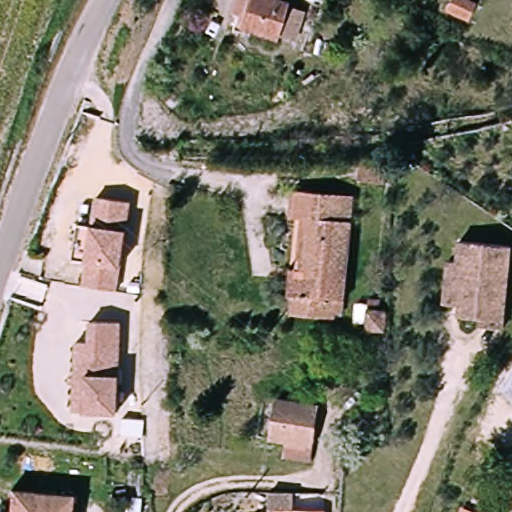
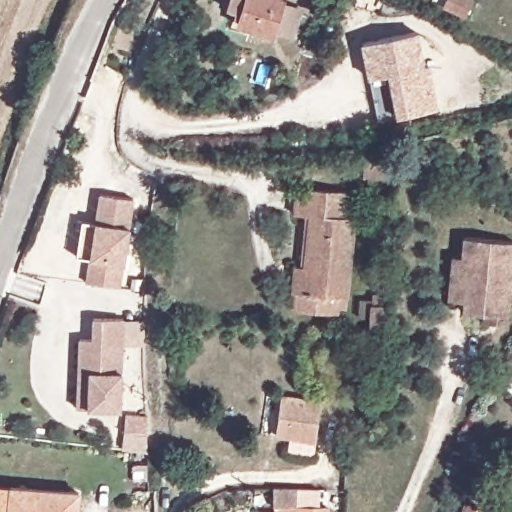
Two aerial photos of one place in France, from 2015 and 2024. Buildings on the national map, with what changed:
unchanged [(274,27),(273,33),(242,24),(249,0),(283,0),(280,16),(287,19),(284,31),(274,27)]
unchanged [(447,6),(450,0),(471,0),(482,6),(473,21),(447,6)]
new [(419,31),(427,66),(430,65),(440,110),(397,119),(388,74),(368,79),(360,43),(419,31)]
unchanged [(366,158),(394,160),(394,181),(365,179),(366,158)]
unchanged [(289,272),(300,272),(305,222),(289,220),(293,188),(342,193),(355,195),(353,222),(347,304),(334,303),(330,322),(295,317),(297,302),(287,300),(289,272)]
unchanged [(93,259),(86,258),(89,221),(96,222),(99,194),(133,197),(125,287),(90,285),(93,259)]
unchanged [(462,261),(464,241),(512,245),(512,277),(508,320),(463,316),(465,304),(450,303),(455,260),(462,261)]
unchanged [(388,303),(387,325),(375,324),(377,303),(388,303)]
unchanged [(82,373),(80,340),(96,340),(96,318),(125,319),(125,409),(95,410),(81,410),(82,373)]
unchanged [(277,399),(317,403),(312,461),(286,459),(287,442),(281,441),(272,441),(274,420),(277,399)]
unchanged [(132,464),(147,465),(148,480),(149,494),(132,494),(132,479),(132,464)]
unchanged [(7,495),(75,496),(74,512),(7,512),(7,495)]
unchanged [(272,509),(265,509),(266,495),(295,497),(294,512),(304,512),(271,512),(272,509)]

